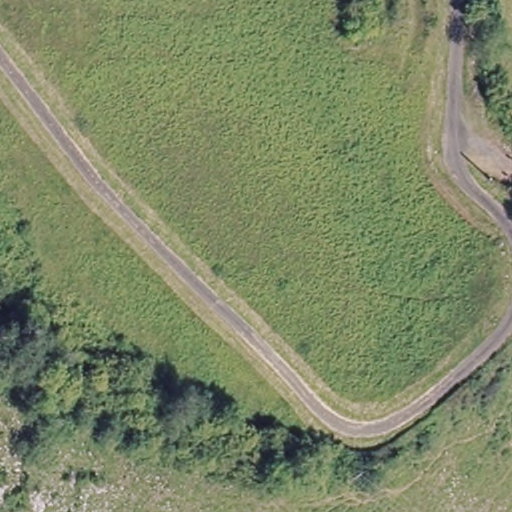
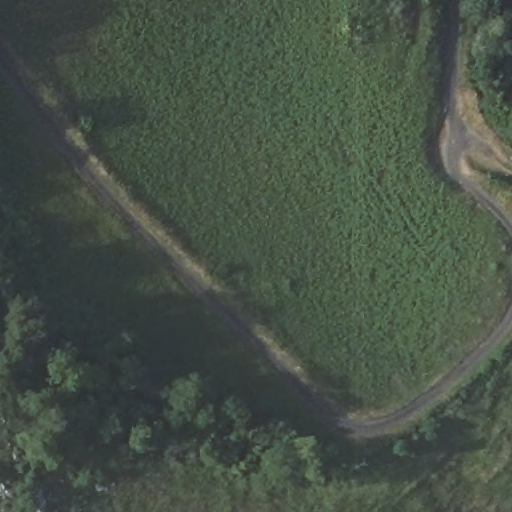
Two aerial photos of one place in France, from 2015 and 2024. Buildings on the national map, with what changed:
[]

